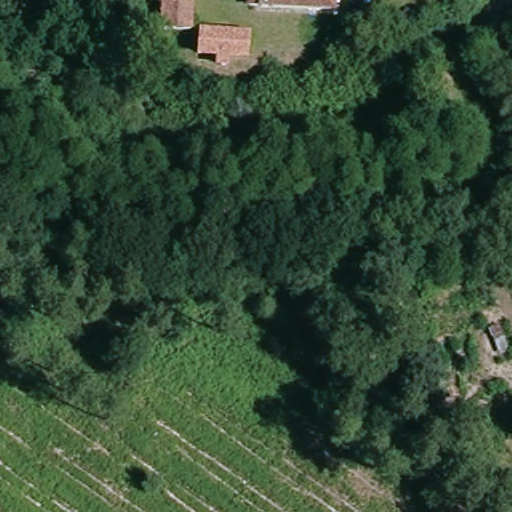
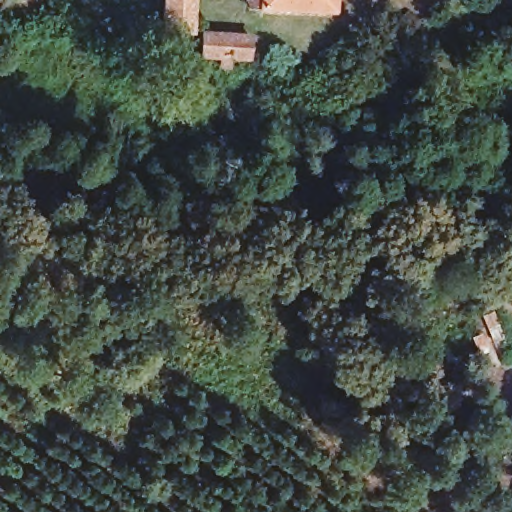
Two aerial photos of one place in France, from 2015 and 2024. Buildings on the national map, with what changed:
unchanged [(157,24),(159,0),(184,0),(182,24),(157,24)]
unchanged [(337,0),(337,11),(247,7),(248,0),(337,0)]
unchanged [(195,27),(251,30),(248,62),(194,60),(195,27)]

